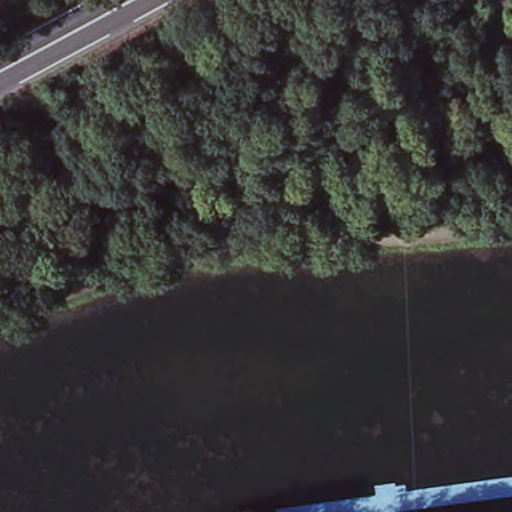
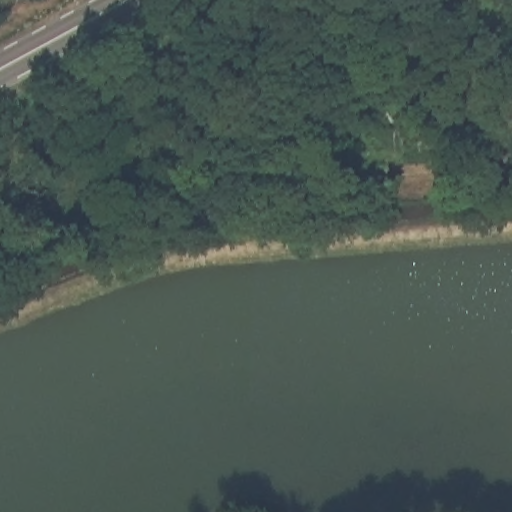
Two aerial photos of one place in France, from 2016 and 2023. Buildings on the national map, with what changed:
[]

